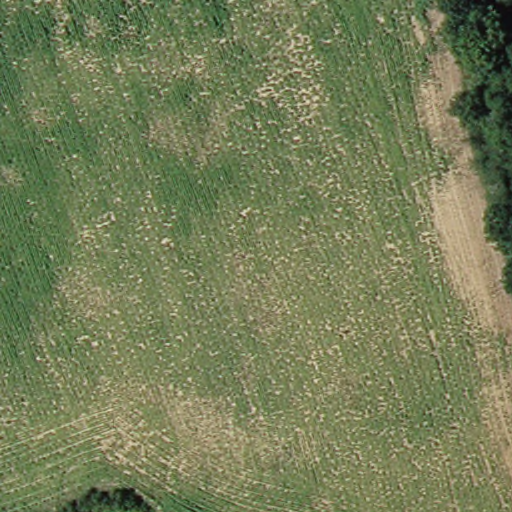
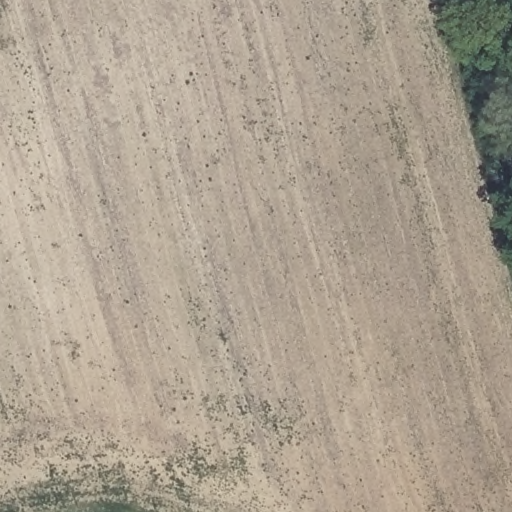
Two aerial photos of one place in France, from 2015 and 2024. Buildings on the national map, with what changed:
[]

